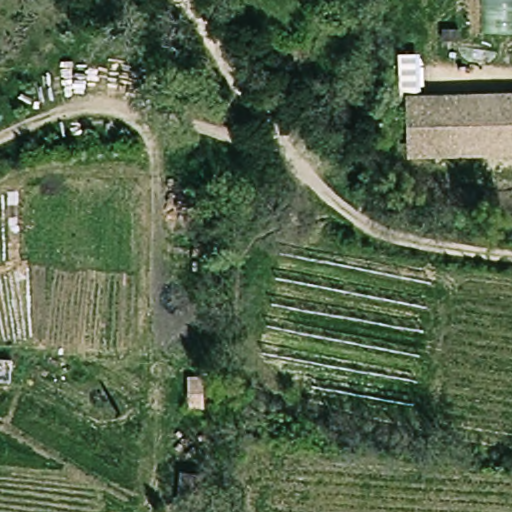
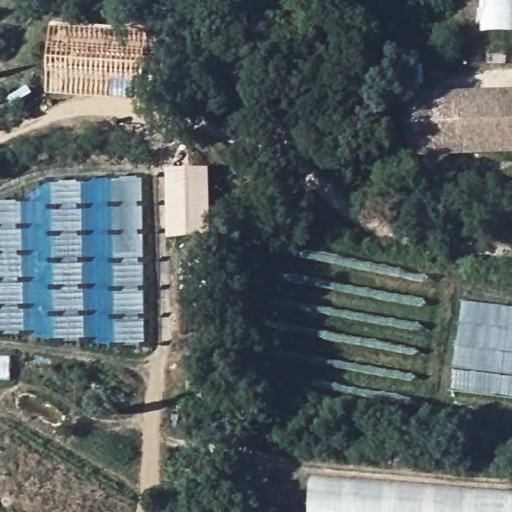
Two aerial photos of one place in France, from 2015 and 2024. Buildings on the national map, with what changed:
unchanged [(489,34),(489,0),(512,0),(512,33),(489,34)]
unchanged [(512,92),(512,156),(409,159),(406,95),(512,92)]
new [(210,171),(211,239),(169,240),(168,172),(210,171)]
new [(0,208),(28,205),(50,186),(143,179),(146,347),(0,344),(0,208)]
new [(453,394),(462,305),(512,311),(512,401),(453,394)]
new [(312,476),(512,493),(512,512),(310,512),(312,476)]

